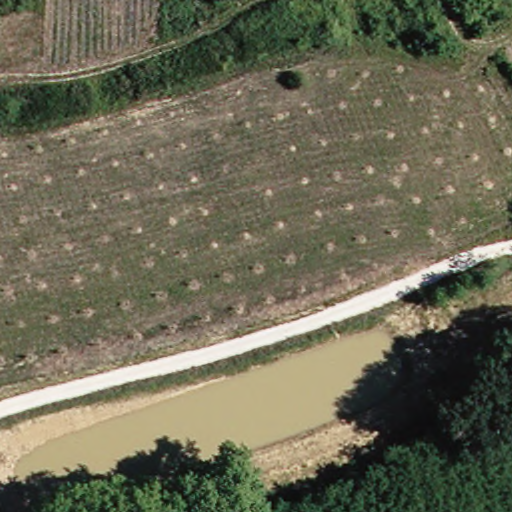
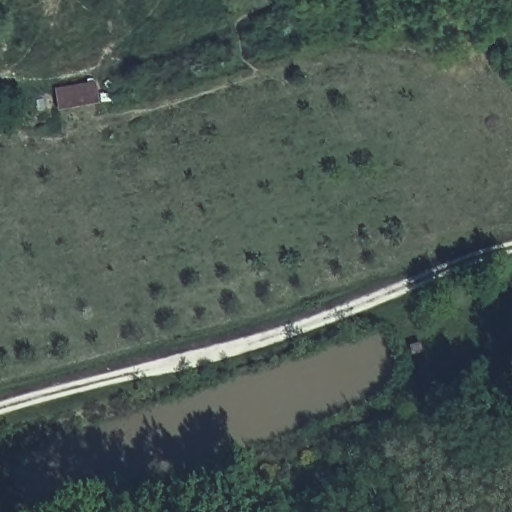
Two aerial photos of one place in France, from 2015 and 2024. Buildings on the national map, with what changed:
new [(58,110),(55,89),(96,82),(100,105),(58,110)]

